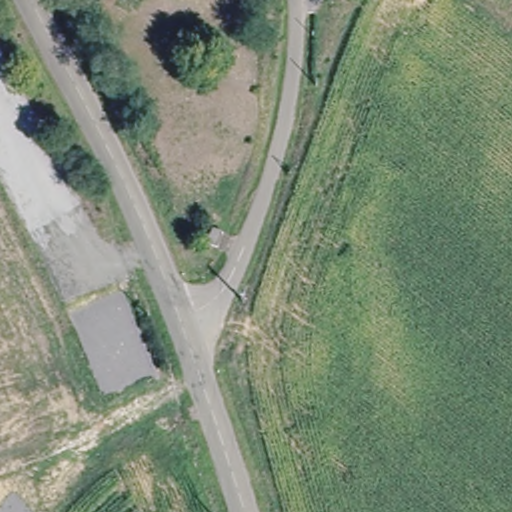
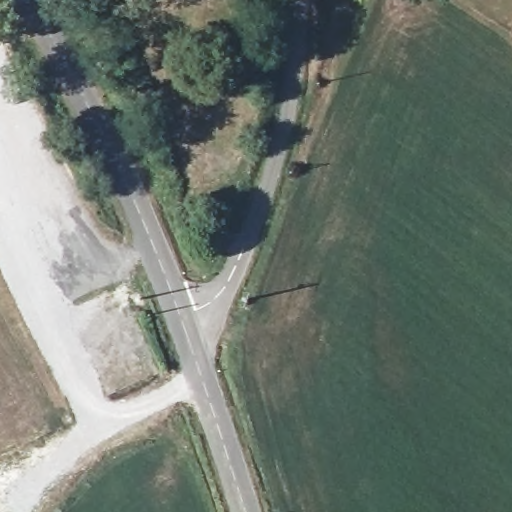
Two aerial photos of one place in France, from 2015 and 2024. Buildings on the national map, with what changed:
unchanged [(177,380),(169,383),(163,375),(174,369),(177,380)]

